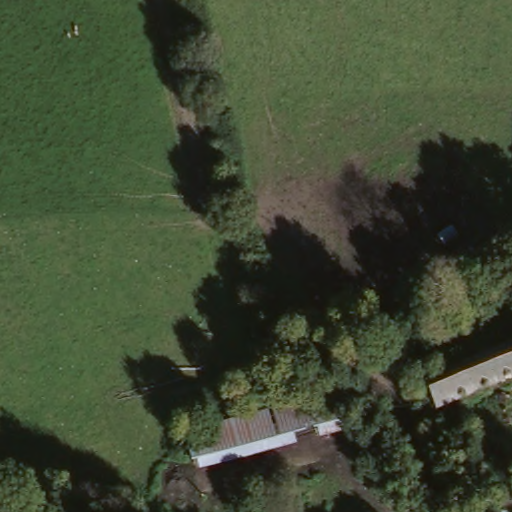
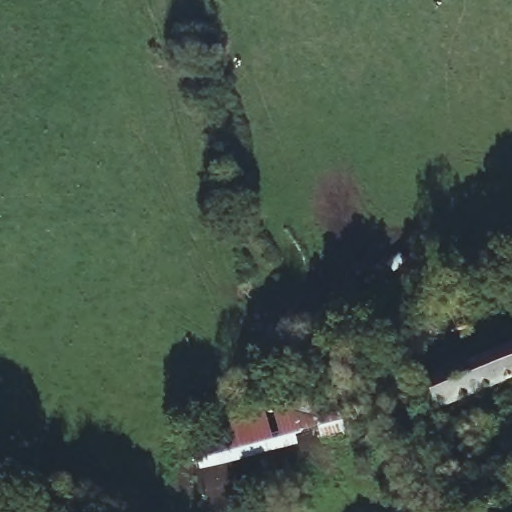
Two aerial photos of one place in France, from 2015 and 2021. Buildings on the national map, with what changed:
unchanged [(438,413),(424,375),(512,335),(512,377),(438,413)]
unchanged [(195,472),(184,430),(336,389),(348,431),(195,472)]

